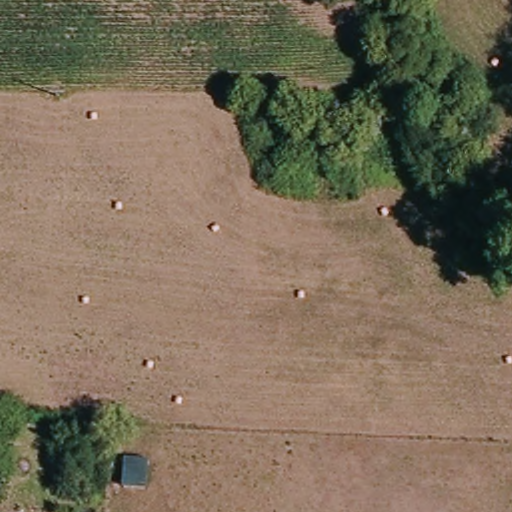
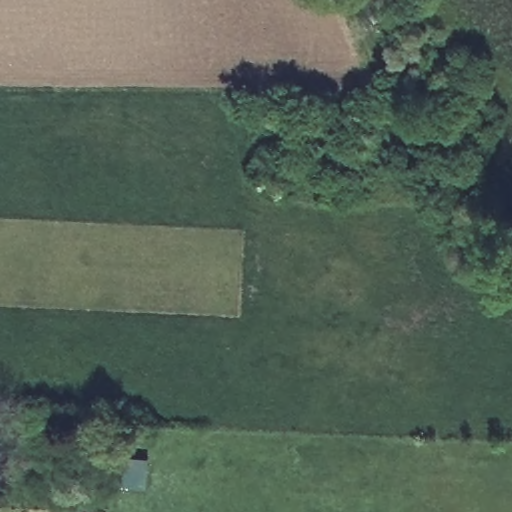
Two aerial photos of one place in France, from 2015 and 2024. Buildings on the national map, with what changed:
unchanged [(124,487),(125,456),(150,458),(147,489),(124,487)]

